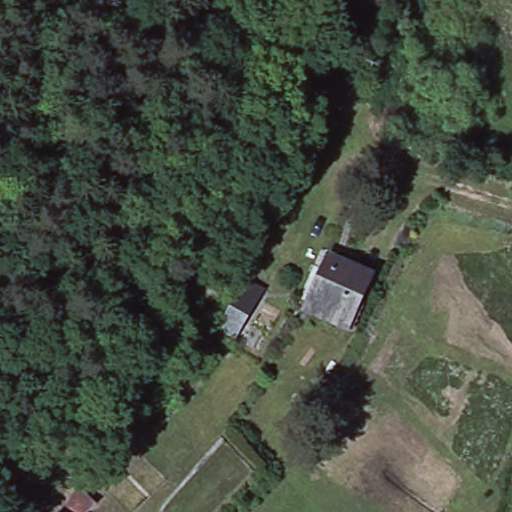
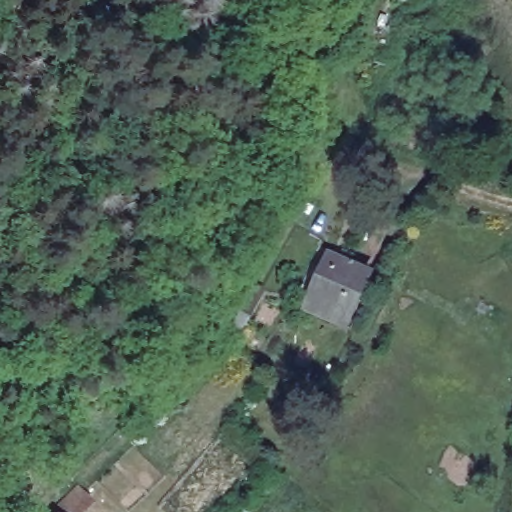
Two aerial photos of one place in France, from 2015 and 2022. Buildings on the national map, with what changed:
unchanged [(355,330),(340,323),(299,307),(302,301),(310,304),(328,257),(370,273),(358,301),(366,304),(355,330)]
unchanged [(243,287),(257,294),(240,330),(225,322),(243,287)]

